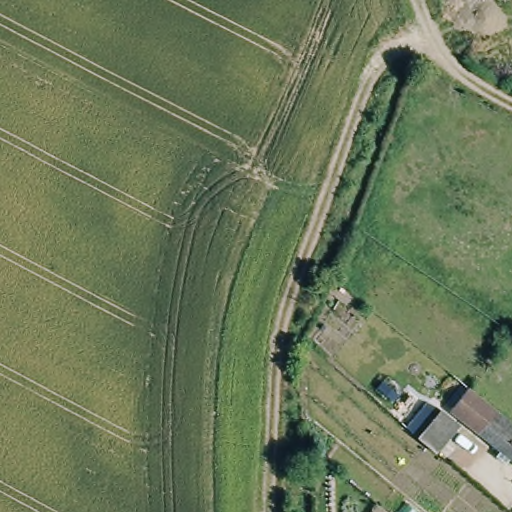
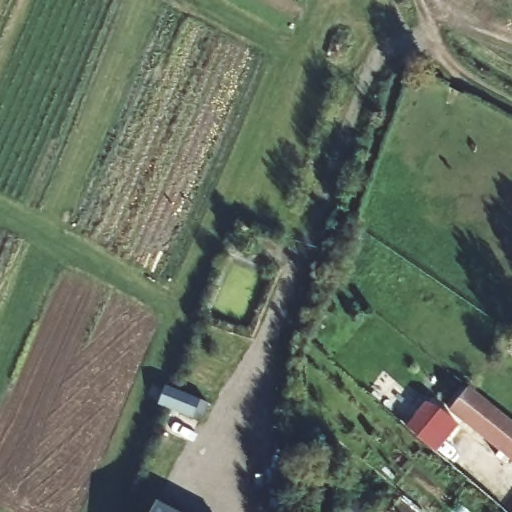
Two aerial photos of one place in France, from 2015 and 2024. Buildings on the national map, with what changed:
unchanged [(475,391),(512,420),(512,455),(461,410),(475,391)]
unchanged [(441,456),(423,441),(448,406),(458,413),(467,421),(441,456)]
new [(177,512),(150,512),(156,500),(177,512)]

